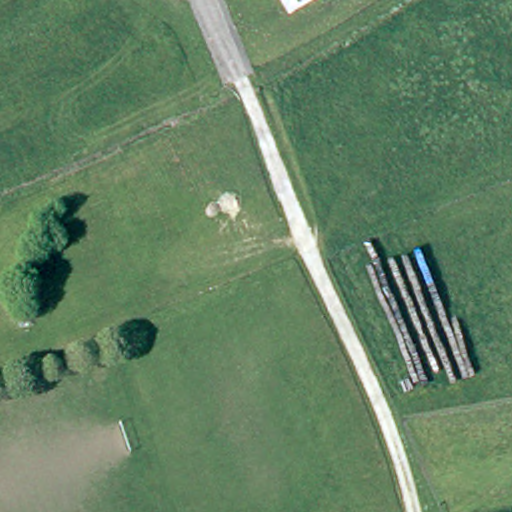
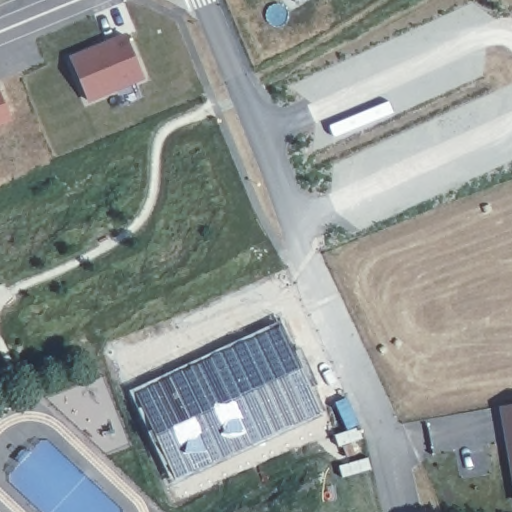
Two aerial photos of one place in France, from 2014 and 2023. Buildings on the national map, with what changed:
new [(126,35),(143,77),(88,100),(70,59),(126,35)]
new [(12,120),(0,125),(0,92),(12,120)]
new [(278,323),(322,414),(172,481),(129,393),(278,323)]
new [(512,480),(499,406),(512,404),(512,480)]

